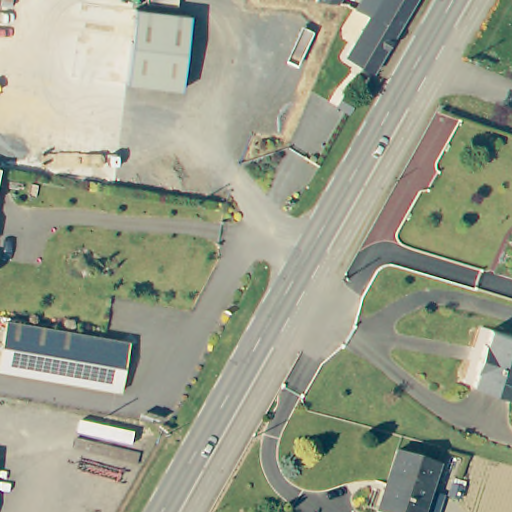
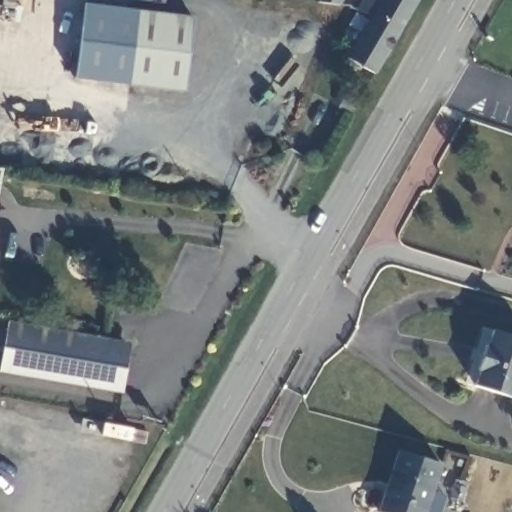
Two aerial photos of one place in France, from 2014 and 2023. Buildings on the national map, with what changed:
unchanged [(322,0),(344,0),(340,8),(318,5),(322,0)]
unchanged [(399,32),(375,73),(349,58),(372,18),(368,15),(374,3),(368,0),(418,0),(399,32)]
new [(75,77),(83,4),(137,10),(128,85),(75,77)]
unchanged [(183,91),(128,85),(137,10),(192,17),(183,91)]
unchanged [(351,68),(347,77),(337,71),(328,66),(333,57),(351,68)]
unchanged [(349,89),(362,96),(354,109),(341,102),(349,89)]
unchanged [(9,323),(125,343),(132,344),(131,351),(124,394),(0,372),(9,323)]
unchanged [(512,337),(512,397),(476,386),(480,371),(478,369),(487,343),(489,344),(493,331),(512,337)]
unchanged [(427,512),(380,512),(400,451),(442,464),(427,512)]

